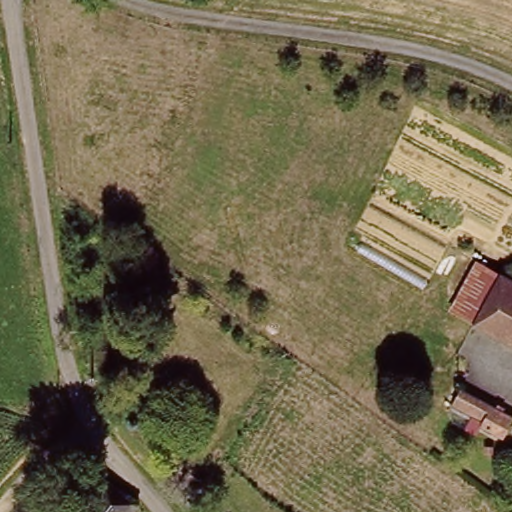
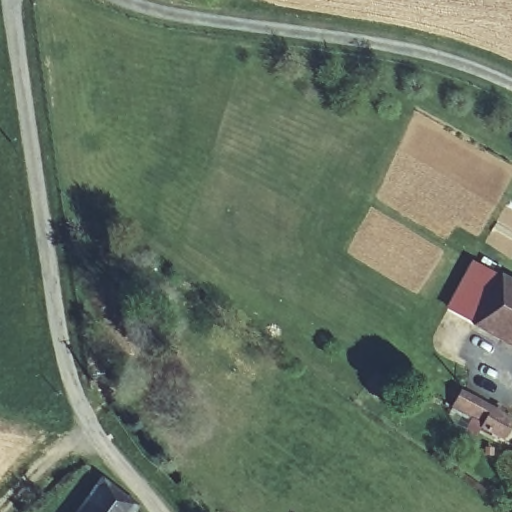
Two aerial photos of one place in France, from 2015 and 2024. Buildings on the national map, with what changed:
unchanged [(450,310),(475,263),(500,275),(475,324),(450,310)]
unchanged [(475,324),(500,275),(512,282),(512,344),(475,324)]
unchanged [(499,435),(480,426),(484,418),(454,402),(461,390),(508,418),(499,435)]
unchanged [(105,476),(141,506),(136,512),(79,512),(105,476)]

